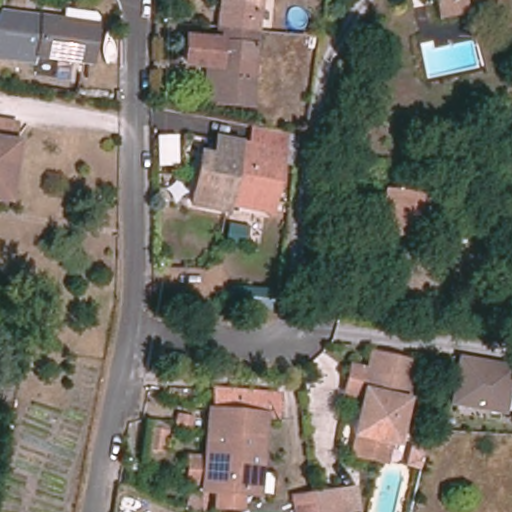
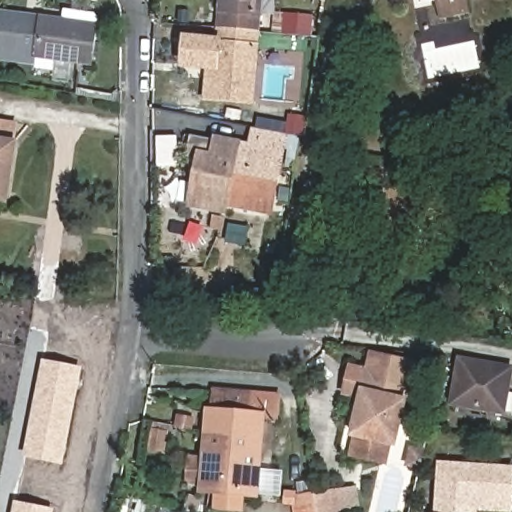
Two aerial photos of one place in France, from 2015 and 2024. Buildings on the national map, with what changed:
unchanged [(207,68),(183,66),(186,37),(217,40),(221,12),(221,0),(261,0),(260,16),(257,46),(252,107),(205,103),(207,68)]
unchanged [(442,18),(438,1),(442,0),(465,0),(467,12),(442,18)]
unchanged [(21,55),(26,18),(64,23),(66,12),(97,16),(96,34),(91,64),(21,55)]
unchanged [(2,14),(26,18),(21,55),(0,51),(0,18),(2,14)]
unchanged [(0,143),(0,120),(17,123),(14,145),(0,143)]
unchanged [(272,214),(225,205),(224,208),(194,203),(197,183),(202,155),(207,156),(216,158),(219,140),(236,143),(251,146),(254,127),(287,133),(272,214)]
unchanged [(14,145),(6,200),(0,200),(0,143),(14,145)]
unchanged [(381,232),(382,222),(387,192),(420,197),(416,221),(413,237),(381,232)]
unchanged [(256,294),(272,295),(272,306),(255,305),(256,294)]
unchanged [(466,369),(468,352),(458,350),(461,335),(502,342),(496,386),(506,388),(501,409),(452,400),(457,367),(464,369),(466,369)]
unchanged [(415,363),(396,445),(391,444),(387,464),(352,455),(357,436),(352,435),(361,398),(345,394),(351,367),(367,371),(372,353),(415,363)]
new [(83,367),(64,465),(23,458),(42,359),(83,367)]
unchanged [(221,503),(222,487),(207,486),(215,407),(219,407),(221,386),(283,392),(282,412),(268,411),(262,491),(248,490),(247,506),(221,503)]
new [(437,460),(512,465),(512,512),(487,512),(478,511),(478,512),(435,512),(437,460)]
unchanged [(360,512),(296,512),(293,496),(358,487),(360,512)]
new [(55,509),(54,512),(12,512),(15,501),(55,509)]

